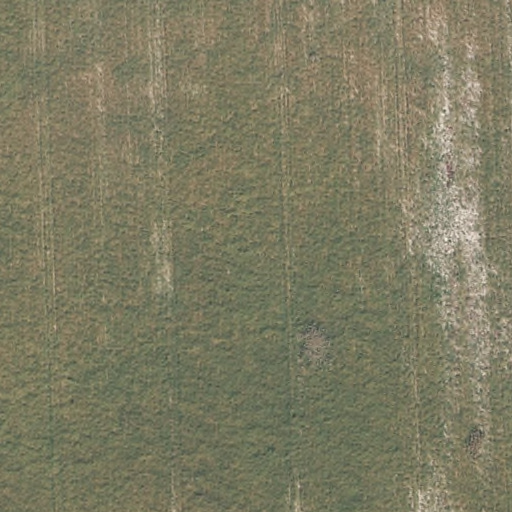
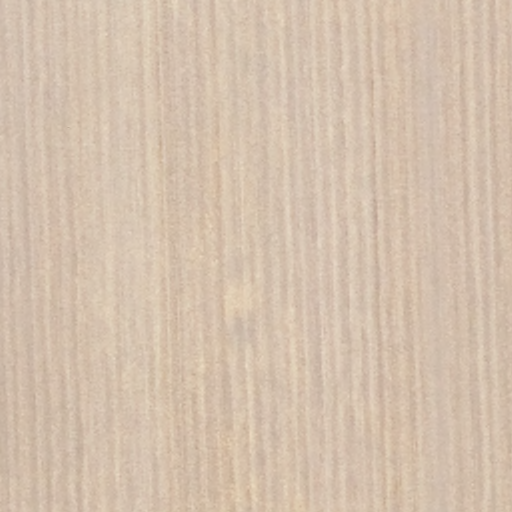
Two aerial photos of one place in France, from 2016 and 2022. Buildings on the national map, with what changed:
[]

